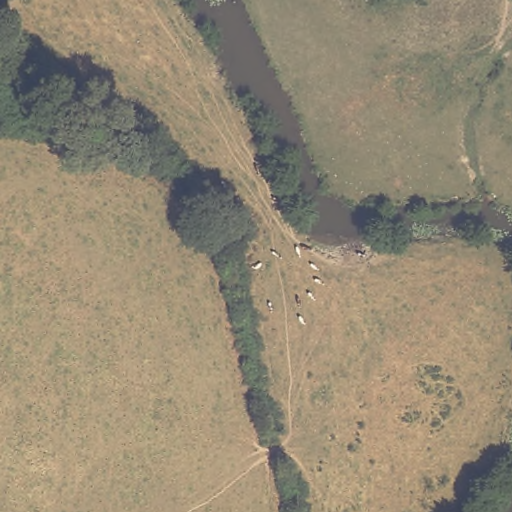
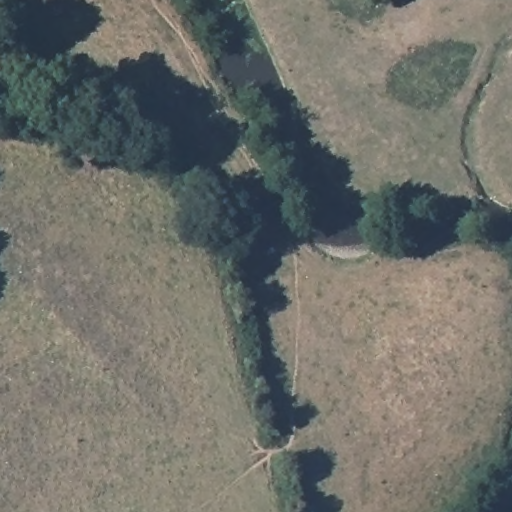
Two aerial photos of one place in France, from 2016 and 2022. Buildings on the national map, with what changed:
[]

